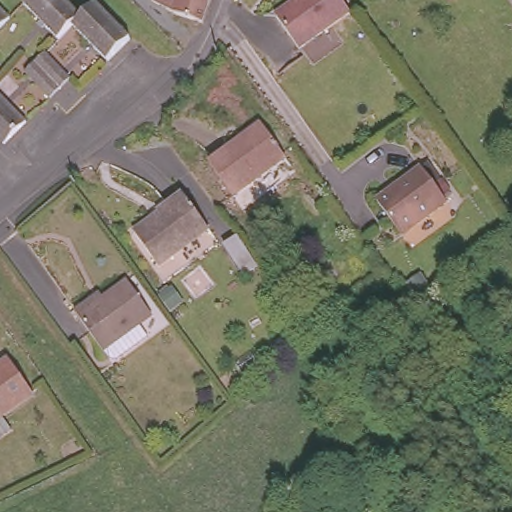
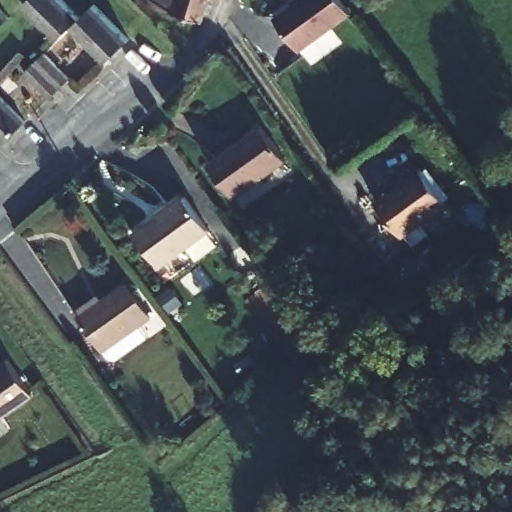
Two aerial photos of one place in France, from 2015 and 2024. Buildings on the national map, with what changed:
unchanged [(58,40),(23,4),(28,0),(63,0),(80,18),(73,26),(58,40)]
unchanged [(177,16),(151,2),(151,0),(209,0),(202,22),(177,16)]
unchanged [(304,5),(302,3),(306,0),(339,0),(353,19),(301,56),(278,23),(304,5)]
unchanged [(80,18),(95,4),(129,40),(108,61),(73,26),(80,18)]
unchanged [(9,18),(0,27),(0,9),(9,18)]
unchanged [(50,98),(25,72),(33,64),(34,63),(44,53),(69,79),(68,80),(59,89),(50,98)]
unchanged [(25,122),(3,144),(0,140),(0,96),(25,122)]
unchanged [(236,196),(209,169),(254,123),(281,151),(236,196)]
unchanged [(401,241),(377,206),(424,172),(449,207),(401,241)]
unchanged [(159,269),(136,236),(184,200),(209,232),(159,269)]
unchanged [(77,317),(124,283),(149,318),(101,352),(77,317)]
unchanged [(0,421),(0,368),(10,361),(35,397),(0,421)]

